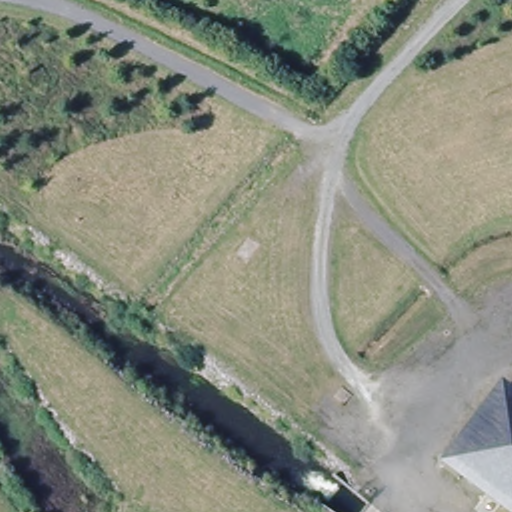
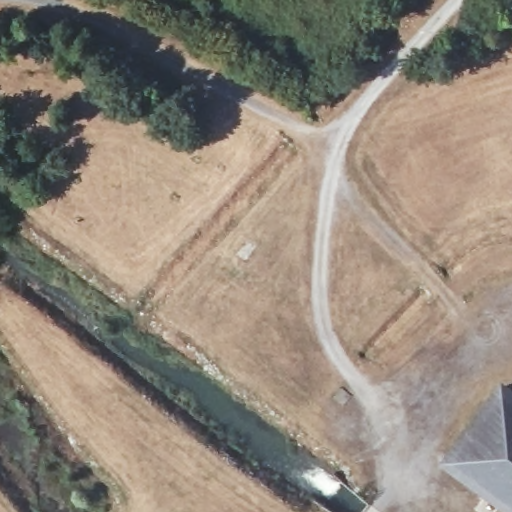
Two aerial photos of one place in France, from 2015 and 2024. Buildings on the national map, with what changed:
unchanged [(439,466),(498,383),(512,393),(512,512),(506,512),(439,466)]

